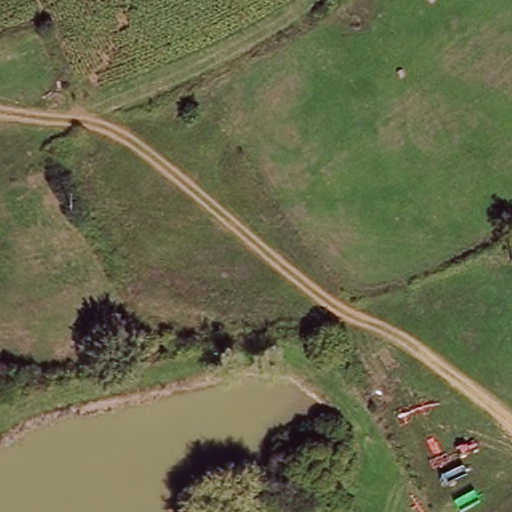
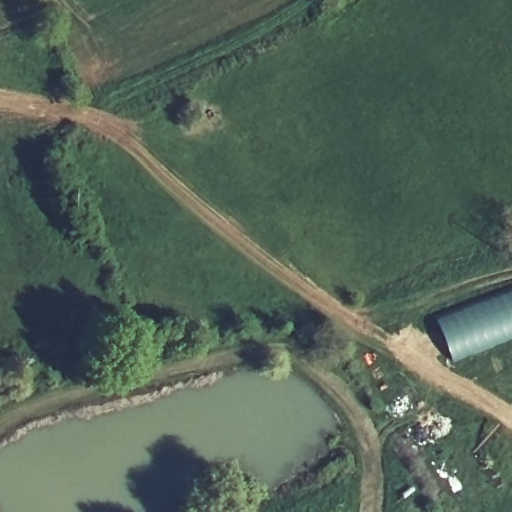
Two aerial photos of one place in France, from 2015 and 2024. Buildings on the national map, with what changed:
new [(450,360),(435,317),(512,288),(512,337),(450,360)]

